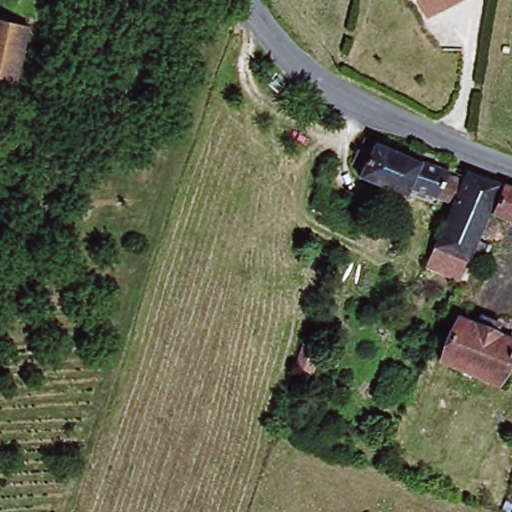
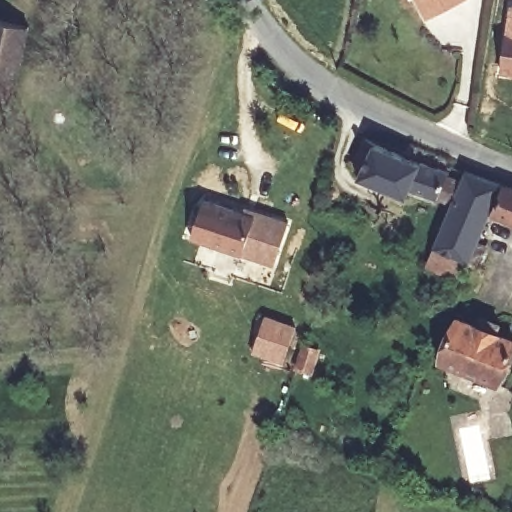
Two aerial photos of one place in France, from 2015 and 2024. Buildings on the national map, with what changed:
unchanged [(424,21),(413,0),(465,0),(424,21)]
new [(509,3),(512,4),(512,75),(499,73),(509,3)]
unchanged [(0,20),(30,27),(14,99),(0,96),(0,20)]
unchanged [(429,256),(436,239),(454,196),(439,190),(412,179),(408,187),(360,167),(364,160),(354,155),(367,130),(376,134),(418,152),(422,154),(423,152),(452,164),(450,167),(464,172),(469,162),(504,176),(471,254),(463,270),(429,256)]
unchanged [(512,179),(512,212),(494,205),(505,177),(512,179)]
new [(243,208),(244,204),(289,219),(274,266),(190,237),(203,196),(243,208)]
new [(266,317),(296,327),(289,347),(258,336),(266,317)]
unchanged [(501,326),(498,335),(512,340),(512,355),(499,386),(441,362),(459,318),(479,327),(483,317),(501,326)]

